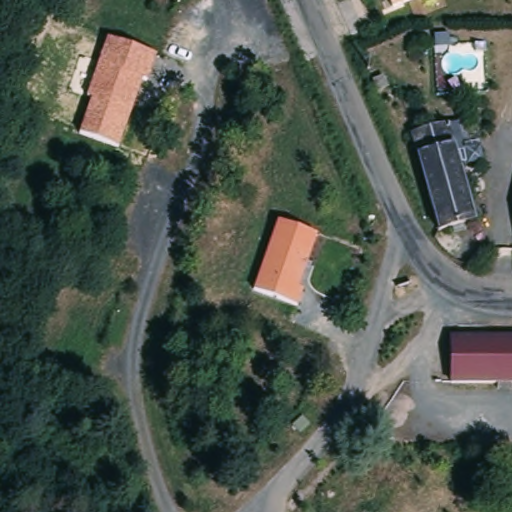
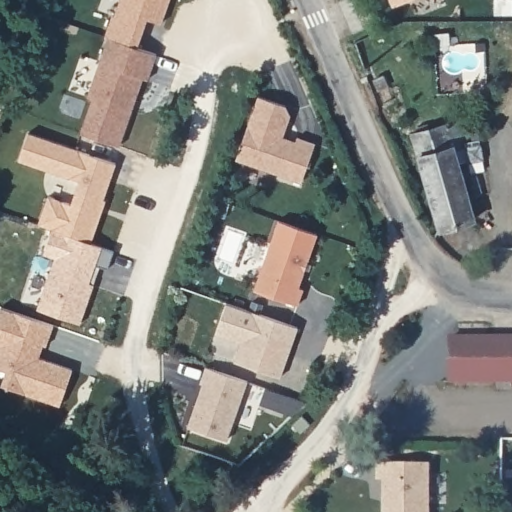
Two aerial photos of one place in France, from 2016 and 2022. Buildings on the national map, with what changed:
new [(106,38),(102,36),(110,12),(115,13),(119,0),(169,0),(161,22),(146,17),(136,48),(106,38)]
unchanged [(392,5),(390,0),(406,0),(392,5)]
unchanged [(155,54),(145,82),(141,80),(117,148),(80,132),(90,102),(85,99),(106,38),(155,54)]
unchanged [(375,81),(383,78),(387,88),(378,91),(375,81)]
new [(300,142),(318,148),(304,187),(239,164),(261,101),(288,110),(294,119),(285,142),(299,146),(300,142)]
unchanged [(456,121),(462,139),(450,141),(473,218),(440,230),(411,136),(456,121)]
new [(31,136),(119,167),(106,202),(109,203),(93,246),(55,232),(41,228),(51,199),(74,207),(82,184),(21,163),(31,136)]
unchanged [(319,235),(300,288),(305,290),(297,306),(252,290),(276,220),(319,235)]
new [(46,257),(55,232),(93,246),(116,254),(110,273),(102,270),(96,288),(82,327),(40,312),(57,261),(46,257)]
new [(229,306),(300,331),(282,382),(236,365),(242,346),(218,338),(229,306)]
new [(48,349),(45,347),(40,360),(75,372),(61,409),(3,388),(8,374),(0,371),(0,356),(2,349),(0,348),(0,319),(4,309),(55,328),(48,349)]
unchanged [(445,380),(447,330),(512,331),(512,381),(445,380)]
new [(205,387),(203,386),(209,370),(250,384),(229,444),(190,430),(205,387)]
new [(377,460),(430,461),(431,512),(383,512),(383,479),(376,479),(377,460)]

